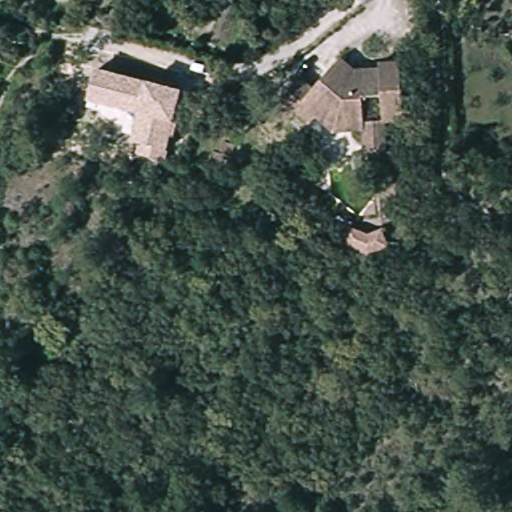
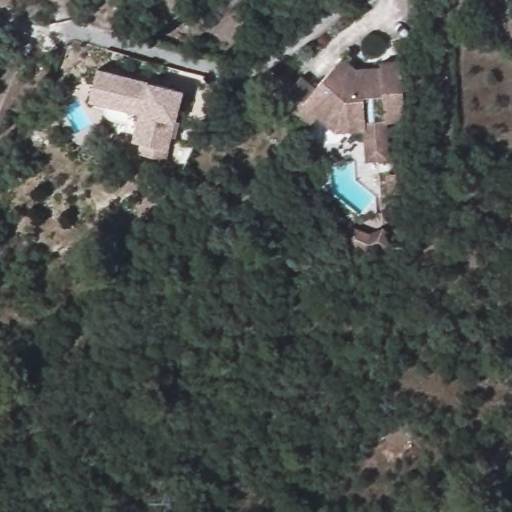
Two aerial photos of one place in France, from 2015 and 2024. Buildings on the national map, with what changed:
unchanged [(316,119),(308,128),(294,119),(288,127),(273,116),(297,82),(313,92),(332,68),(339,59),(354,69),(378,68),(378,61),(398,60),(404,119),(386,120),(390,158),(368,160),(364,129),(348,131),(335,133),(327,127),(316,119)]
unchanged [(146,81),(182,91),(174,123),(168,151),(166,161),(137,154),(141,142),(132,139),(138,113),(90,100),(98,69),(146,81)]
unchanged [(392,186),(390,167),(407,166),(409,185),(392,186)]

